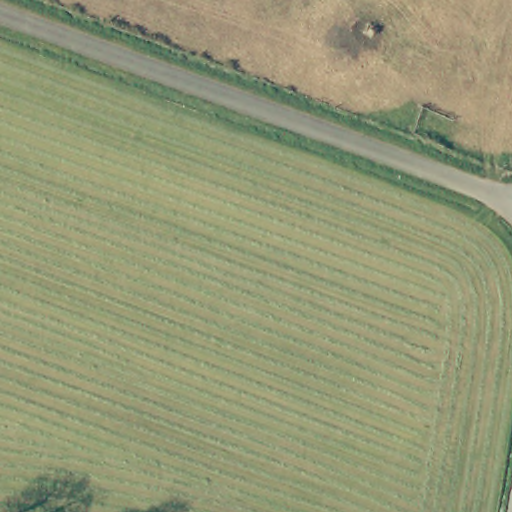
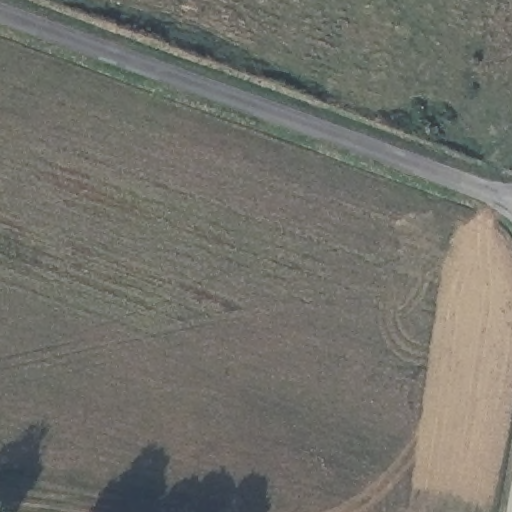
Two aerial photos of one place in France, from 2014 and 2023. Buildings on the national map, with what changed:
[]

